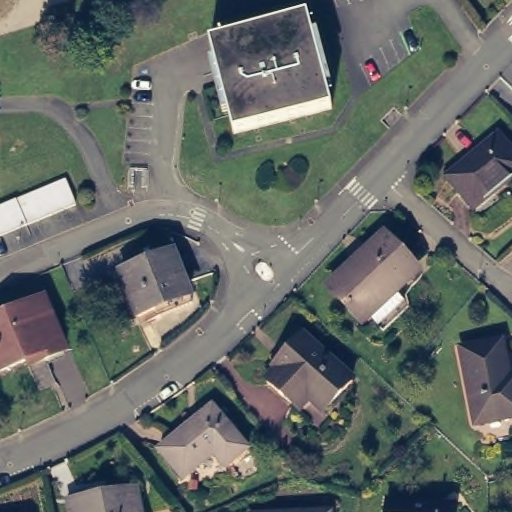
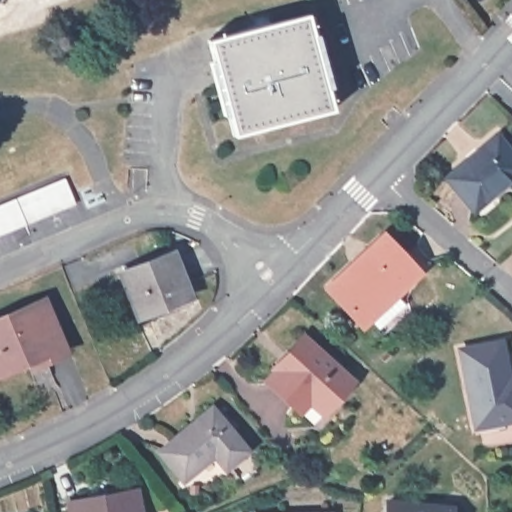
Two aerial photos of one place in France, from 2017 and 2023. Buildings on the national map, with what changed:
unchanged [(333,103),(235,129),(210,34),(308,8),(333,103)]
unchanged [(402,130),(395,123),(406,112),(413,118),(402,130)]
unchanged [(445,173),(498,135),(512,153),(512,177),(491,192),(470,207),(467,203),(445,173)]
unchanged [(0,235),(0,206),(66,179),(76,203),(0,235)]
unchanged [(387,231),(419,267),(364,316),(331,279),(387,231)]
unchanged [(152,309),(150,302),(131,308),(113,263),(170,244),(185,287),(187,296),(152,309)]
unchanged [(23,355),(0,365),(0,312),(40,296),(61,347),(40,356),(26,362),(23,355)]
unchanged [(352,381),(320,412),(307,398),(296,409),(265,378),(277,367),(273,363),(289,348),(305,333),(352,381)]
unchanged [(502,373),(510,372),(512,385),(512,409),(468,415),(457,341),(496,336),(502,373)]
unchanged [(217,406),(248,452),(225,467),(215,454),(180,476),(160,445),(217,406)]
unchanged [(140,512),(75,512),(75,496),(140,493),(140,512)]
unchanged [(448,512),(383,512),(385,497),(449,504),(448,512)]
unchanged [(329,512),(303,512),(329,511),(329,512)]

